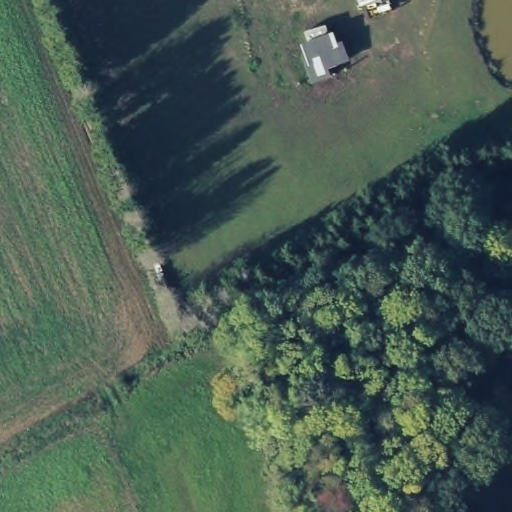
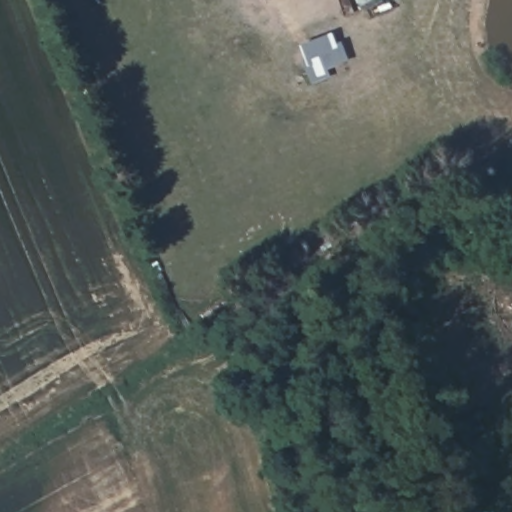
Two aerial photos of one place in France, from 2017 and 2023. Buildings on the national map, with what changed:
unchanged [(359,3),(358,0),(369,0),(359,3)]

